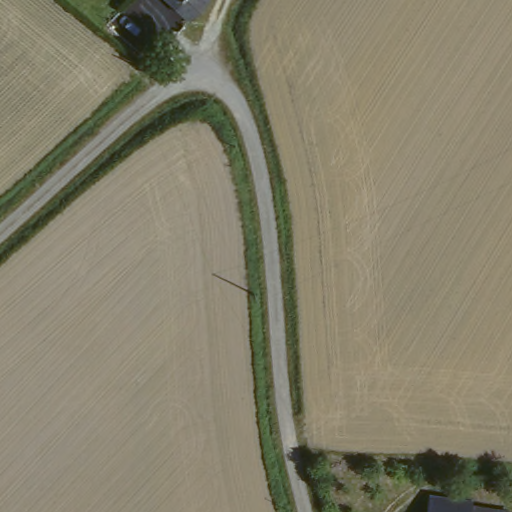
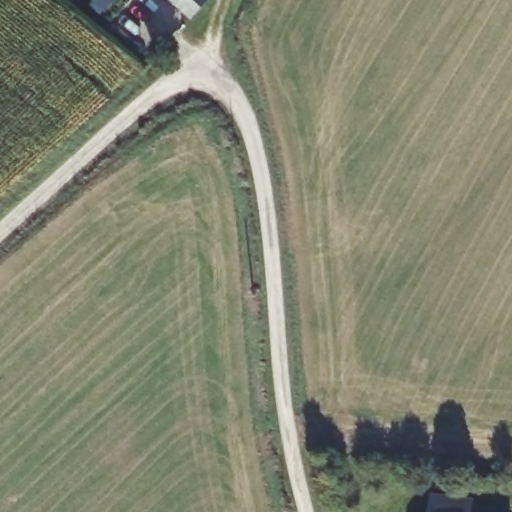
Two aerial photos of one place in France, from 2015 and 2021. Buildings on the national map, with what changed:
unchanged [(164,0),(209,0),(193,22),(164,0)]
unchanged [(458,503),(460,511),(471,512),(421,512),(422,501),(458,503)]

